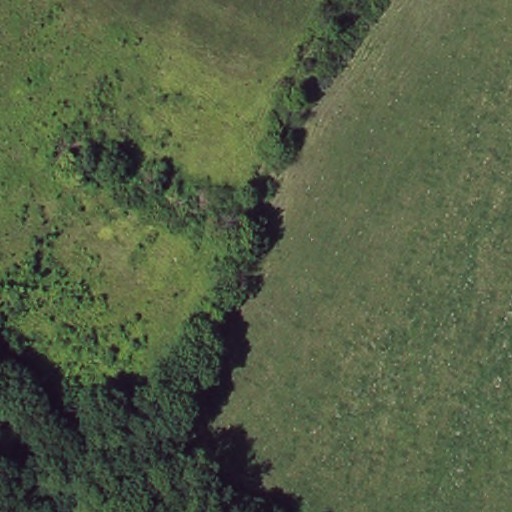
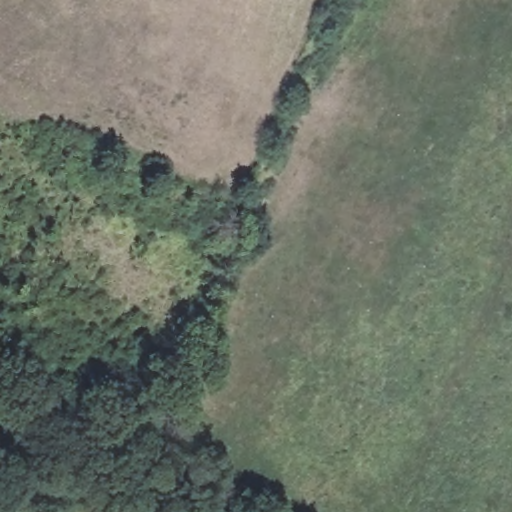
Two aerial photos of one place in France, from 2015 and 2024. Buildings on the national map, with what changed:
unchanged [(76,182),(84,167),(99,176),(92,191),(90,190),(76,182)]

